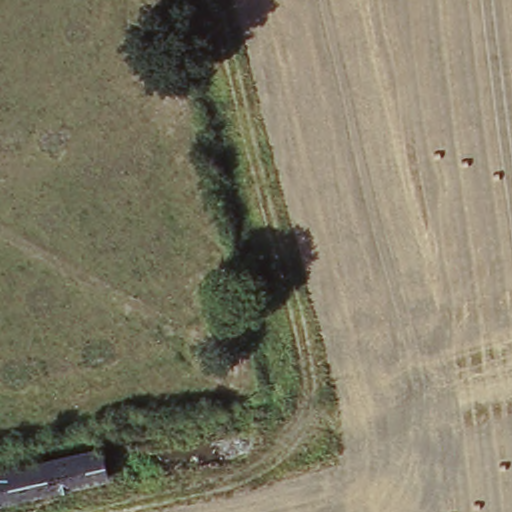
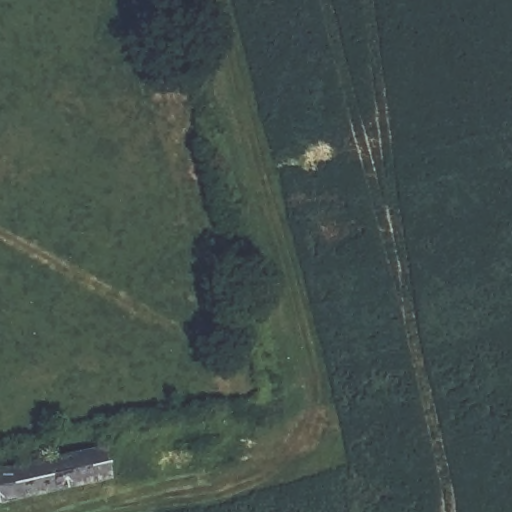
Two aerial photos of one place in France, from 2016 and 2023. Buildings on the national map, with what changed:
unchanged [(103,447),(109,479),(0,504),(0,472),(103,447)]

